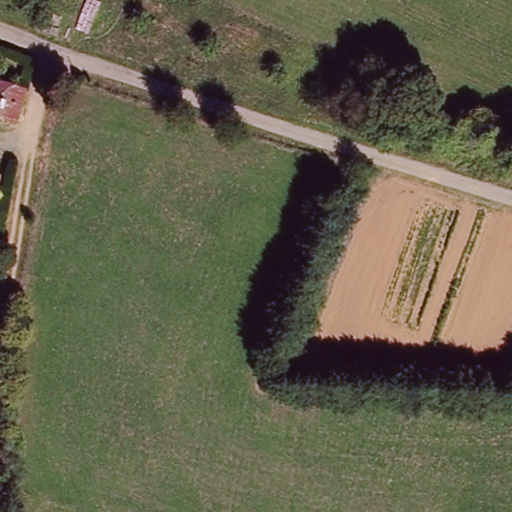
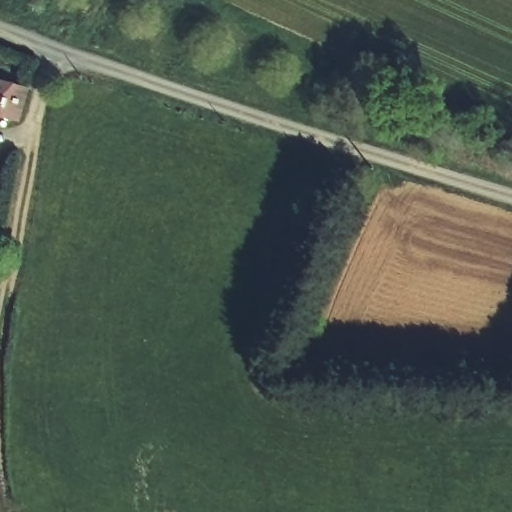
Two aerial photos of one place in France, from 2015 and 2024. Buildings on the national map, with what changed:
unchanged [(0,84),(22,90),(15,120),(0,116),(0,84)]

